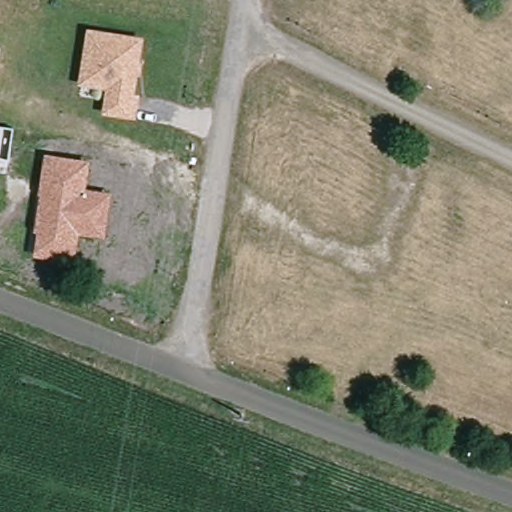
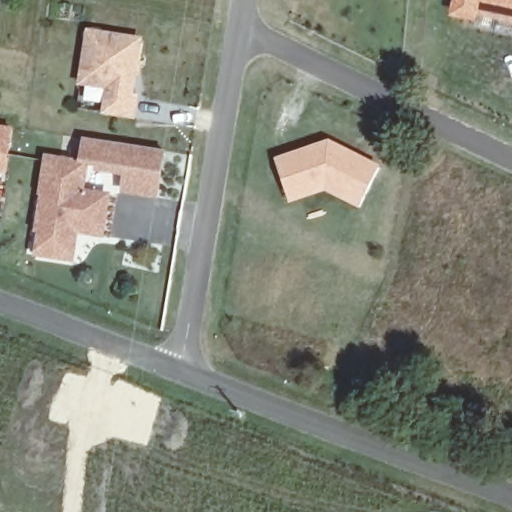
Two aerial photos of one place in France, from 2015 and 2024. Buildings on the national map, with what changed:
new [(478,15),(477,20),(447,14),(451,0),(512,0),(512,23),(478,15)]
unchanged [(143,36),(135,93),(139,95),(135,120),(101,116),(105,91),(77,85),(86,28),(143,36)]
new [(5,177),(0,176),(0,125),(13,127),(5,177)]
new [(81,138),(165,151),(157,200),(120,194),(122,176),(90,171),(91,163),(78,161),(81,138)]
new [(327,138),(380,165),(357,209),(324,193),(288,204),(273,158),(327,138)]
unchanged [(112,193),(104,239),(79,235),(75,263),(33,256),(43,155),(91,163),(87,189),(112,193)]

